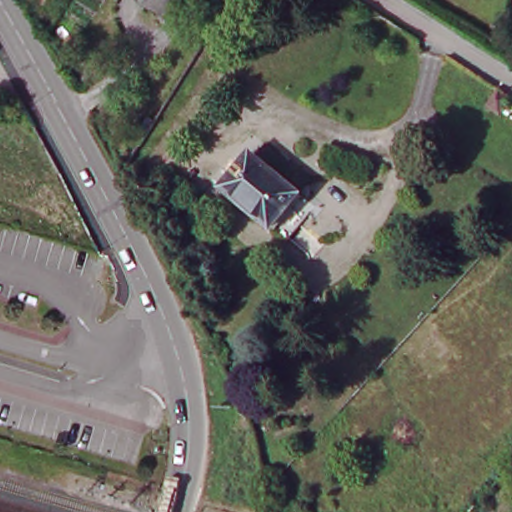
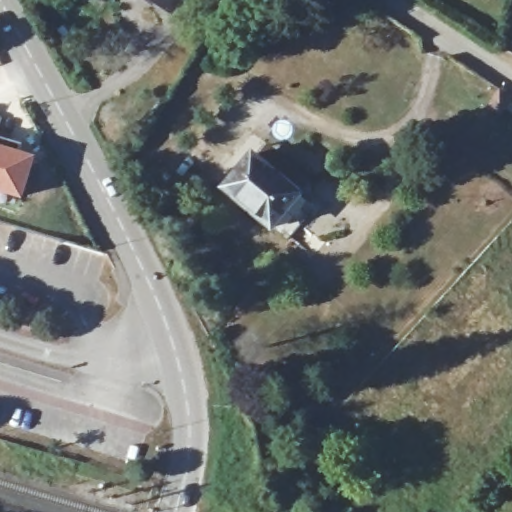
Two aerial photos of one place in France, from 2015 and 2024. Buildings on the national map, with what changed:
unchanged [(151,0),(184,0),(175,14),(151,0)]
demolished [(0,69),(0,49),(8,65),(0,69)]
unchanged [(502,117),(492,108),(501,93),(512,101),(512,105),(502,117)]
new [(23,200),(0,193),(0,144),(38,155),(23,200)]
unchanged [(304,192),(273,227),(226,185),(254,153),(304,192)]

